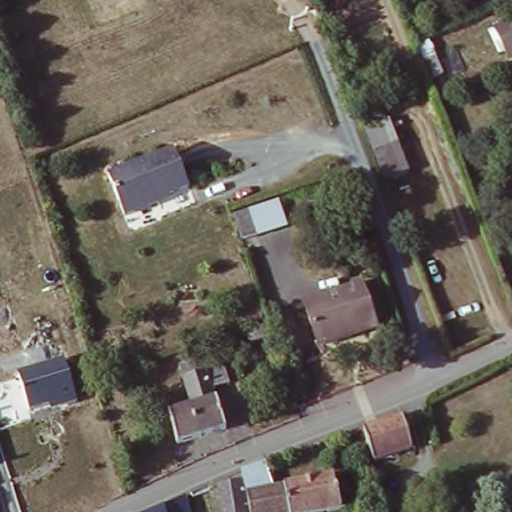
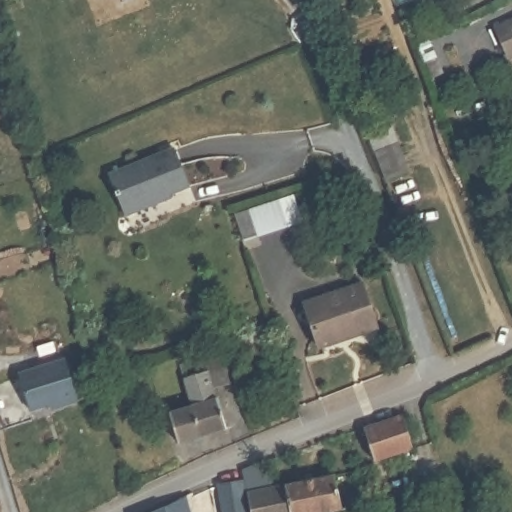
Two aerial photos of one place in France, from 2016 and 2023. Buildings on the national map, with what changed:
unchanged [(512,22),(512,56),(511,56),(498,29),(512,22)]
unchanged [(407,177),(384,184),(364,134),(387,126),(407,177)]
unchanged [(172,152),(186,190),(152,202),(154,205),(117,216),(105,174),(172,152)]
unchanged [(292,226),(261,236),(251,209),(281,199),(292,226)]
unchanged [(360,282),(372,322),(318,341),(306,301),(360,282)]
unchanged [(220,355),(230,387),(212,392),(225,427),(179,444),(170,414),(190,407),(178,370),(220,355)]
unchanged [(79,407),(49,416),(47,410),(29,415),(17,376),(64,363),(79,407)]
unchanged [(367,465),(351,436),(353,435),(402,413),(412,447),(367,465)]
unchanged [(246,471),(269,461),(277,483),(292,483),(336,475),(344,510),(331,512),(224,512),(220,484),(247,481),(246,471)]
unchanged [(193,512),(157,512),(191,497),(193,512)]

